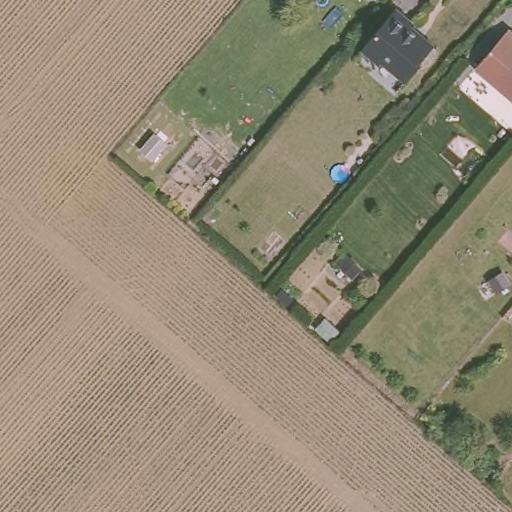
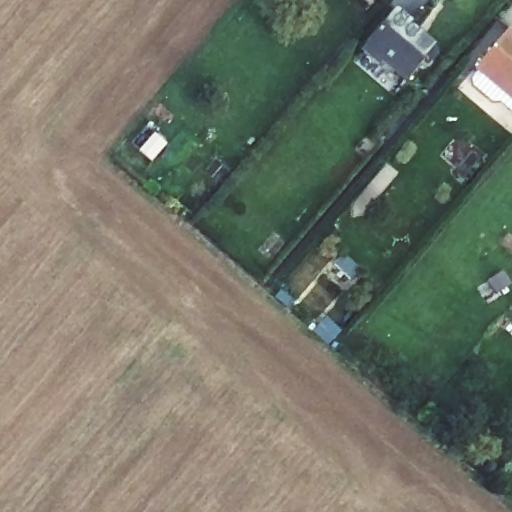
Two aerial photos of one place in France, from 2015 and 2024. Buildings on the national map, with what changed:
unchanged [(414,25),(409,30),(415,36),(416,35),(424,42),(426,40),(428,41),(432,46),(433,45),(438,50),(439,57),(434,63),(433,65),(429,69),(425,66),(409,84),(387,63),(380,69),(364,54),(399,11),(414,25)]
unchanged [(498,86),(497,87),(477,68),(510,30),(512,31),(512,100),(498,86)]

